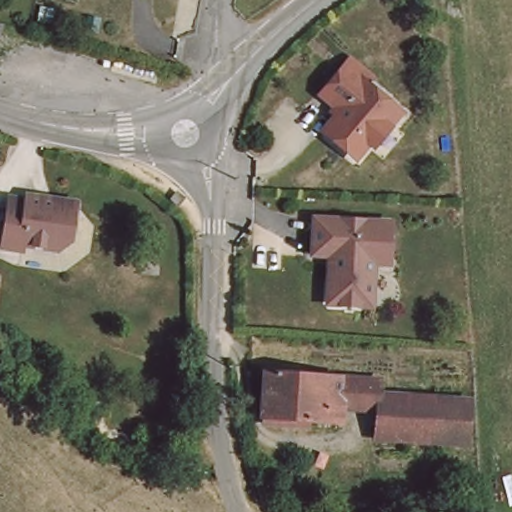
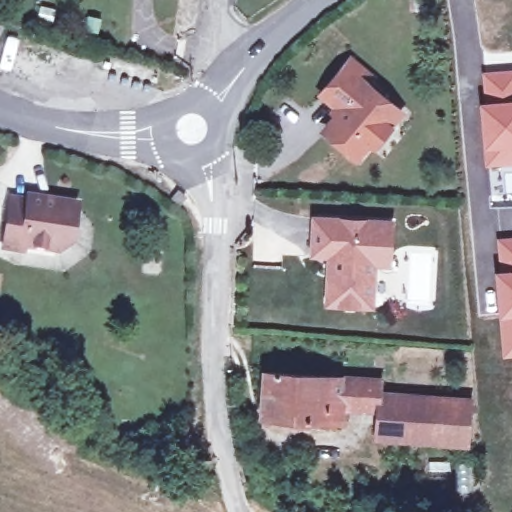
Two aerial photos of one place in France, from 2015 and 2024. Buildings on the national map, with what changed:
unchanged [(0,38),(0,19),(5,16),(25,36),(7,40),(0,38)]
unchanged [(385,125),(371,142),(367,140),(355,155),(324,130),(335,115),(330,111),(335,105),(319,93),(345,60),(367,77),(361,84),(387,105),(395,111),(385,125)]
new [(512,99),(485,100),(482,70),(512,69),(512,99)]
new [(512,99),(512,165),(484,168),(479,101),(485,100),(512,99)]
unchanged [(5,196),(23,197),(27,192),(72,197),(67,234),(52,245),(17,240),(15,244),(0,242),(5,196)]
unchanged [(314,211),(348,215),(357,216),(390,220),(387,250),(386,261),(371,260),(367,296),(360,302),(329,298),(324,291),(326,266),(328,249),(310,247),(314,211)]
new [(512,268),(499,268),(496,237),(512,236),(512,268)]
new [(512,268),(512,358),(502,358),(495,269),(499,268),(512,268)]
unchanged [(265,362),(379,376),(378,392),(464,403),(458,448),(372,437),(374,406),(331,401),(330,413),(259,402),(265,362)]

